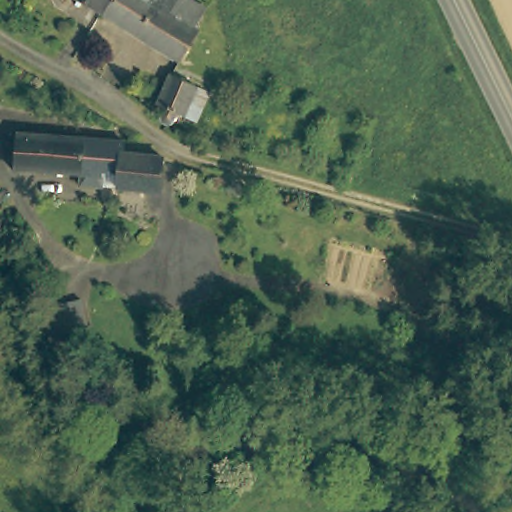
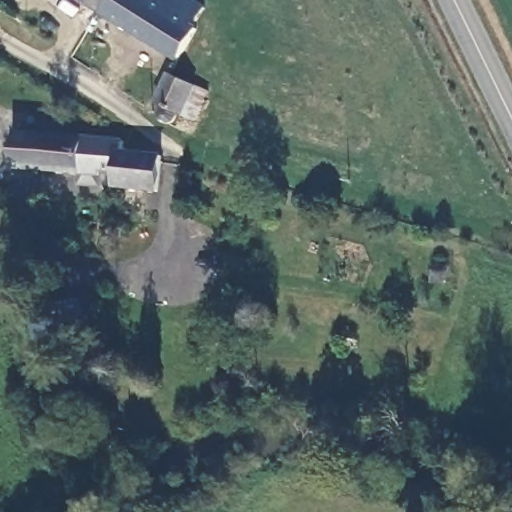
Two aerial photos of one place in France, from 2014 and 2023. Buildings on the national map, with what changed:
unchanged [(193,31),(196,33),(179,62),(75,0),(188,0),(205,10),(193,31)]
unchanged [(200,118),(187,113),(182,111),(181,117),(178,121),(175,123),(170,122),(166,120),(164,116),(162,112),(166,104),(161,101),(174,72),(200,84),(212,89),(200,118)]
unchanged [(116,185),(117,167),(102,167),(101,185),(79,182),(80,172),(12,166),(15,130),(122,139),(122,150),(160,153),(157,189),(116,185)]

